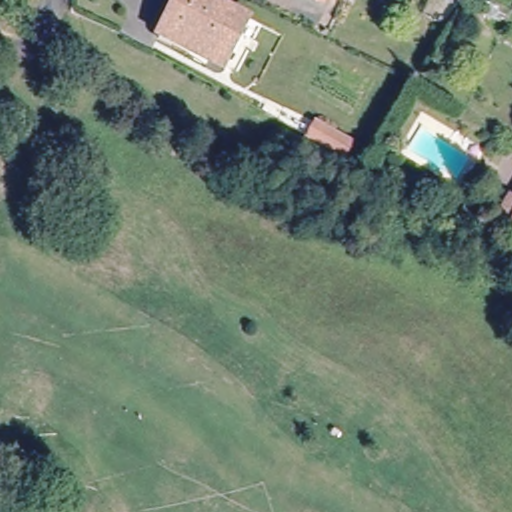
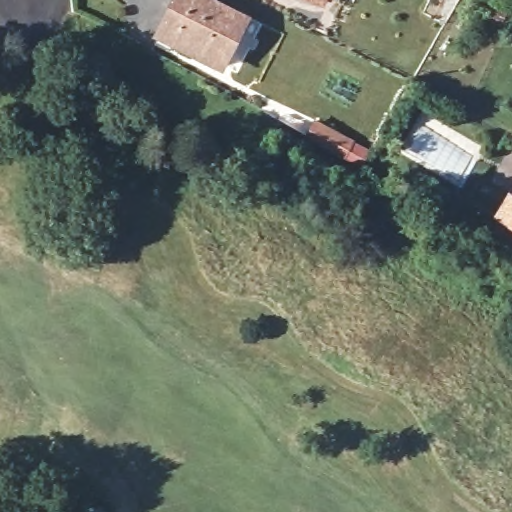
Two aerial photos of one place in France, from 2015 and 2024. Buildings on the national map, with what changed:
unchanged [(214,0),(249,18),(225,67),(161,35),(177,0),(214,0)]
unchanged [(346,156),(338,151),(312,136),(320,120),(347,135),(356,139),(346,156)]
unchanged [(499,205),(512,187),(512,188),(512,214),(499,205)]

